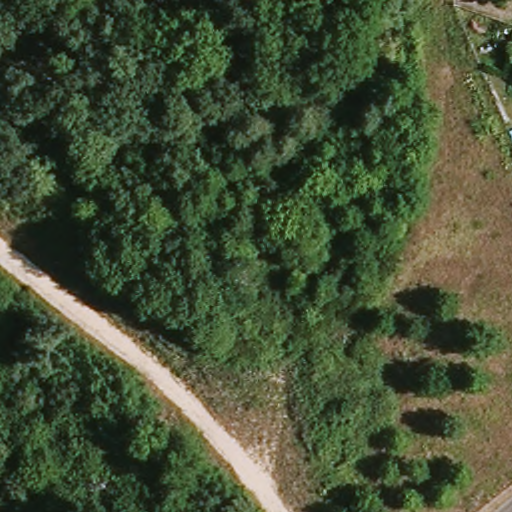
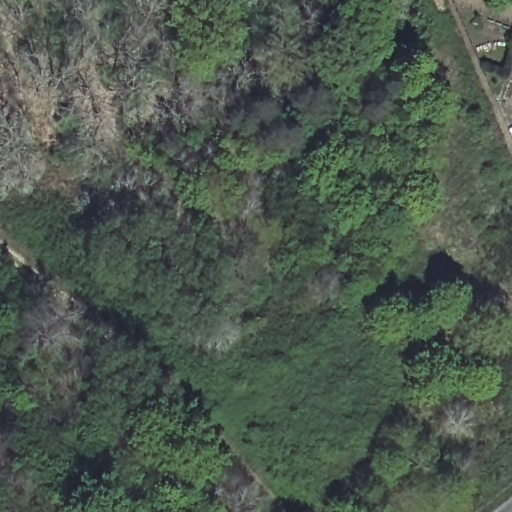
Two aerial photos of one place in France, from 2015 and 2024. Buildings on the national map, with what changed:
[]

